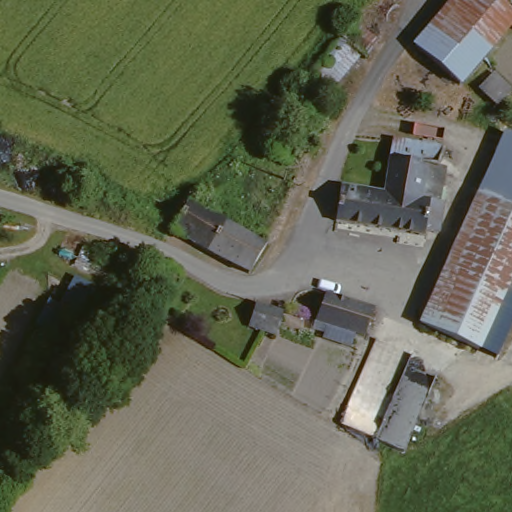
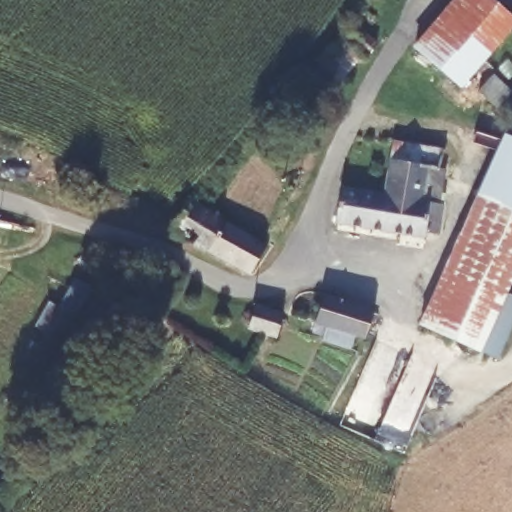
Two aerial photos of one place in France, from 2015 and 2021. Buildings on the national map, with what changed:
unchanged [(488,0),(512,20),(512,27),(459,86),(415,49),(457,0),(488,0)]
unchanged [(355,24),(378,43),(378,44),(365,61),(360,56),(330,91),(310,77),(341,40),(355,24)]
unchanged [(512,89),(512,91),(498,106),(480,91),(495,73),(512,89)]
unchanged [(508,133),(512,134),(512,211),(481,197),(498,157),(508,133)]
unchanged [(340,187),(384,193),(392,141),(443,149),(438,170),(446,170),(441,203),(445,203),(439,235),(424,232),(423,239),(335,224),(340,187)]
unchanged [(195,194),(231,216),(212,250),(175,226),(195,194)]
unchanged [(512,285),(483,352),(425,325),(481,197),(512,211),(512,285)]
unchanged [(231,216),(272,239),(255,271),(212,250),(231,216)]
unchanged [(155,262),(179,275),(162,297),(140,285),(155,262)]
unchanged [(317,324),(330,294),(378,310),(368,336),(366,340),(356,336),(350,350),(325,339),(330,328),(317,324)]
unchanged [(255,304),(283,314),(275,338),(245,328),(255,304)]

